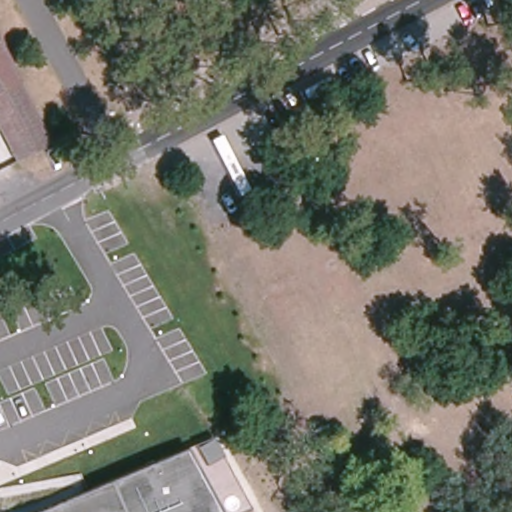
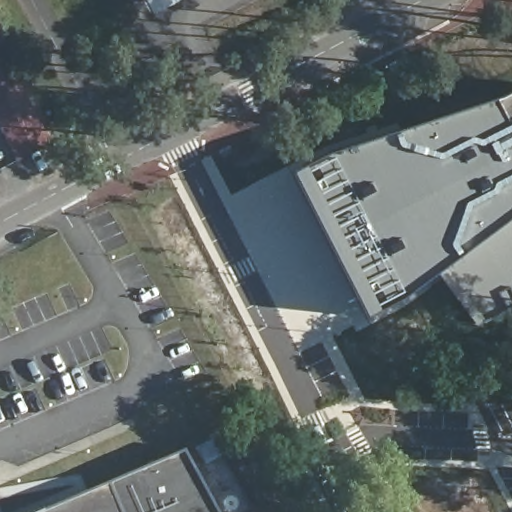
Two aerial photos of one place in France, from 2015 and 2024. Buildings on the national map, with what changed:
new [(145,0),(181,0),(153,15),(145,0)]
unchanged [(19,160),(0,124),(0,44),(51,143),(19,160)]
new [(435,274),(395,303),(356,321),(285,179),(325,158),(488,105),(512,94),(512,300),(468,321),(435,274)]
unchanged [(184,449),(219,512),(37,512),(184,449)]

